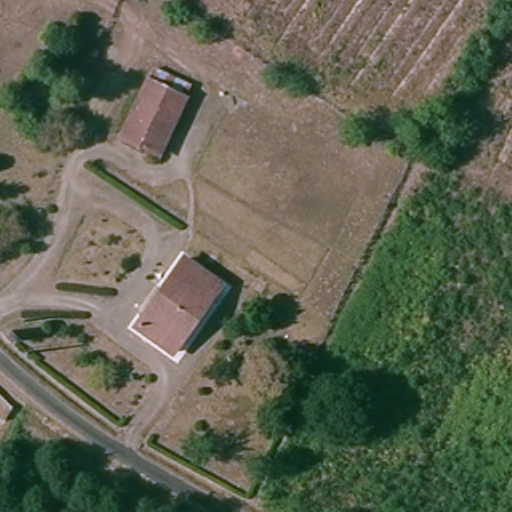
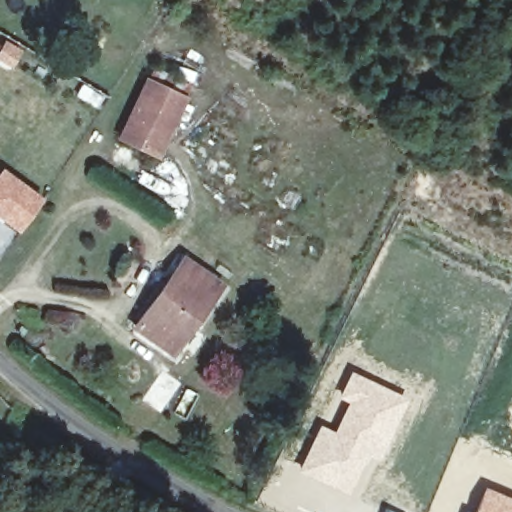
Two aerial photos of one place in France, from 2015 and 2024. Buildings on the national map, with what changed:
unchanged [(160,155),(123,132),(160,72),(197,96),(160,155)]
new [(44,197),(19,233),(0,220),(0,170),(2,167),(44,197)]
unchanged [(180,352),(140,327),(186,254),(226,279),(180,352)]
new [(319,424),(333,431),(346,402),(337,397),(350,371),(406,398),(375,460),(367,457),(347,493),(297,471),(319,424)]
new [(483,486),(512,497),(512,512),(472,512),(483,486)]
new [(386,507),(399,512),(384,512),(386,507)]

